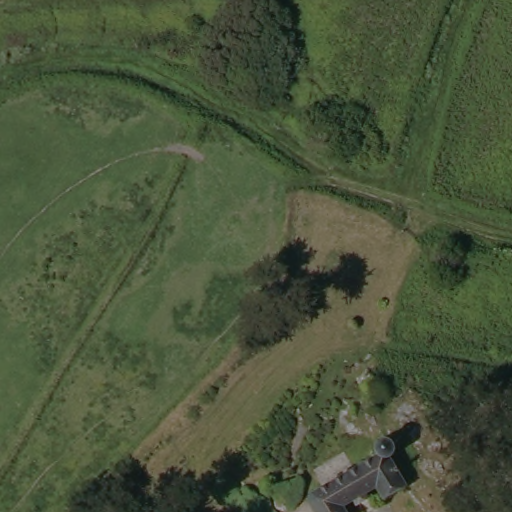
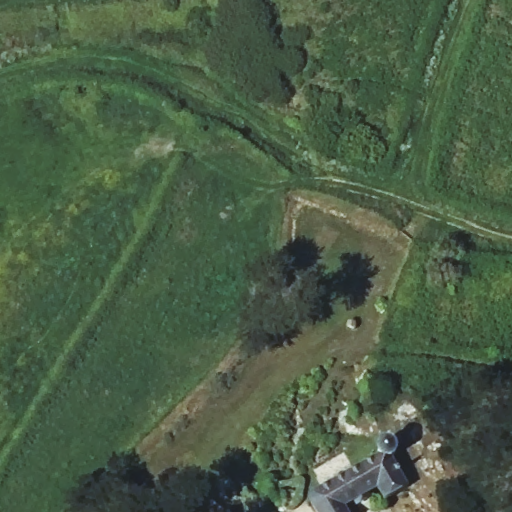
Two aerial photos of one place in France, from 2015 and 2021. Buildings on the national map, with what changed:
unchanged [(340,497),(345,509),(339,512),(316,512),(306,492),(374,455),(378,447),(378,439),(381,436),(386,434),(396,441),(397,449),(394,459),(404,480),(380,493),(374,481),(340,497)]

